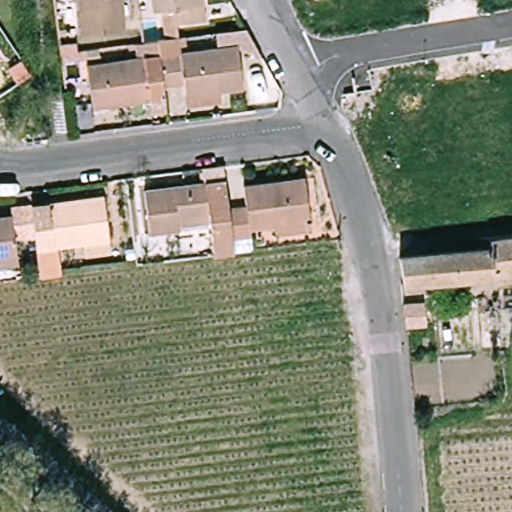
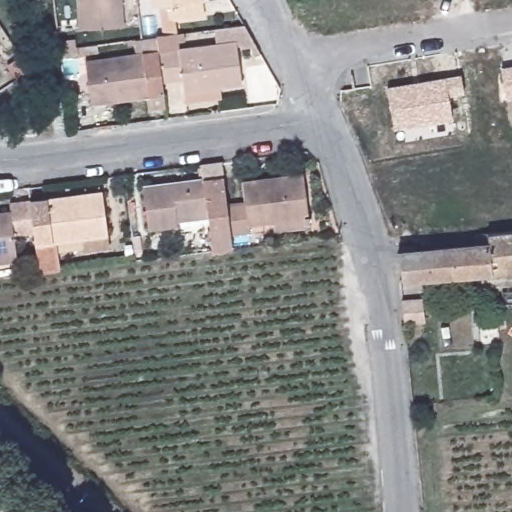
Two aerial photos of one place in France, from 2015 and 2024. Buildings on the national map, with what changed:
unchanged [(128,27),(85,29),(80,0),(127,0),(128,27)]
unchanged [(208,1),(210,15),(180,19),(179,5),(160,6),(159,0),(208,0),(208,1)]
unchanged [(195,103),(193,92),(192,81),(172,84),(167,53),(165,35),(186,33),(188,49),(224,45),(222,28),(251,24),(266,52),(261,54),(257,46),(250,47),(249,45),(244,45),(249,86),(228,88),(228,99),(195,103)]
unchanged [(172,84),(157,86),(158,97),(101,104),(95,62),(167,53),(172,84)]
new [(507,102),(502,67),(512,66),(512,101),(507,102)]
new [(464,94),(449,95),(453,119),(394,128),(387,88),(462,75),(464,94)]
unchanged [(189,223),(159,228),(153,184),(209,175),(207,158),(227,155),(233,199),(237,230),(239,242),(219,245),(217,229),(190,233),(189,223)]
unchanged [(282,224),(281,215),(252,219),(252,228),(237,230),(233,199),(248,197),(245,175),(307,166),(314,211),(315,219),(282,224)]
unchanged [(89,250),(88,239),(59,243),(62,271),(45,273),(40,234),(36,202),(109,193),(114,235),(115,246),(89,250)]
unchanged [(0,216),(19,214),(18,205),(36,202),(40,234),(22,236),(24,252),(25,262),(0,266),(0,216)]
unchanged [(407,279),(405,252),(494,245),(494,234),(512,232),(512,271),(407,279)]
unchanged [(424,318),(405,319),(403,296),(422,295),(424,318)]

